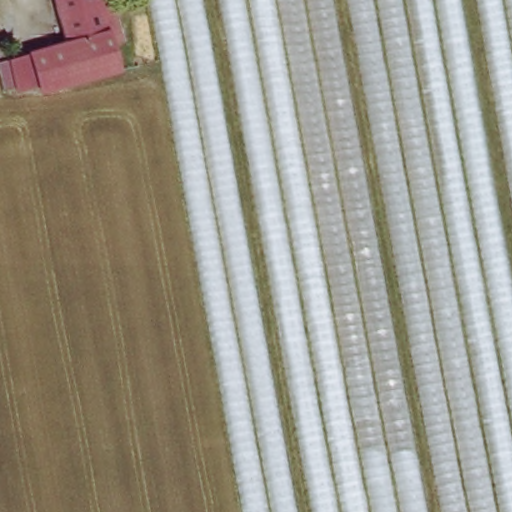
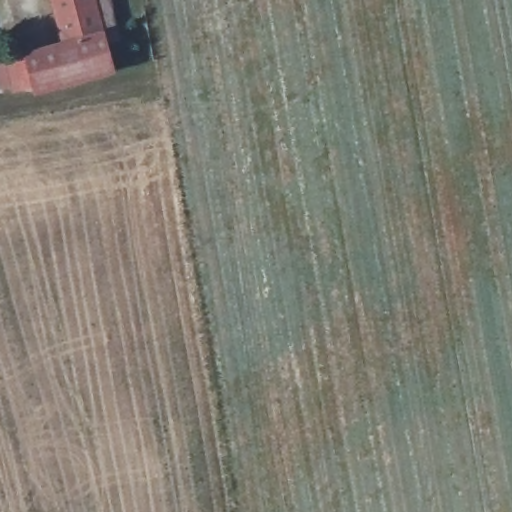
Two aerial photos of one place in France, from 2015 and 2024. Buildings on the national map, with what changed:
unchanged [(109,35),(120,76),(41,95),(39,86),(17,91),(10,60),(67,44),(56,0),(112,0),(120,32),(109,35)]
demolished [(240,512),(146,0),(512,0),(512,512),(240,512)]

